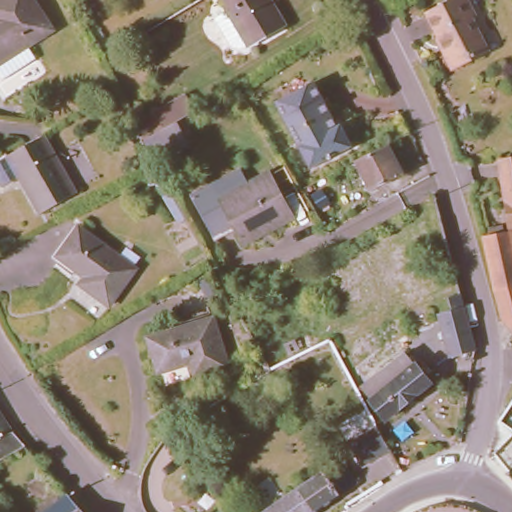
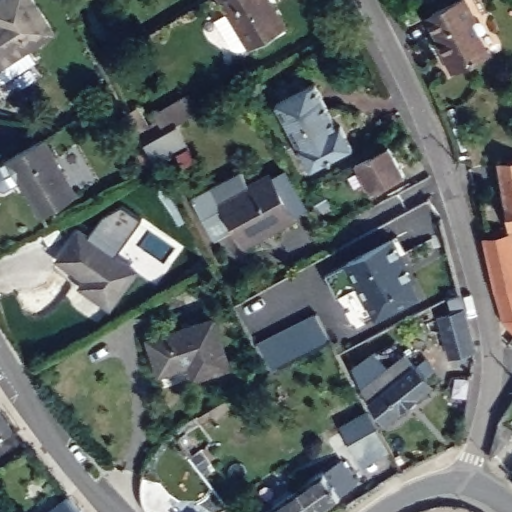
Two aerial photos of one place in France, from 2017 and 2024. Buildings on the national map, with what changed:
unchanged [(47,31),(23,45),(40,75),(0,97),(0,0),(28,0),(47,31)]
unchanged [(272,10),(236,31),(218,0),(266,0),(272,10)]
unchanged [(468,14),(465,15),(483,48),(450,67),(441,52),(443,50),(422,15),(448,0),(461,0),(468,14)]
unchanged [(332,124),(335,122),(347,144),(305,165),(270,101),(308,81),(332,124)]
unchanged [(140,127),(151,120),(159,116),(165,127),(157,131),(145,139),(140,127)]
unchanged [(77,193),(41,214),(8,155),(45,136),(77,193)]
unchanged [(404,175),(374,190),(358,161),(389,145),(404,175)]
unchanged [(512,157),(512,203),(505,204),(500,158),(512,157)]
unchanged [(245,244),(237,228),(217,238),(193,194),(215,182),(223,197),(270,172),(293,217),(245,244)]
unchanged [(371,205),(329,228),(320,212),(305,187),(322,177),(333,195),(357,182),(360,190),(362,189),(371,205)]
unchanged [(505,204),(512,203),(512,226),(507,226),(505,204)]
unchanged [(57,250),(80,222),(137,266),(107,301),(80,279),(85,273),(77,266),(57,250)]
unchanged [(482,237),(507,234),(512,254),(512,287),(493,290),(482,237)]
new [(389,239),(410,278),(405,281),(414,297),(374,318),(357,284),(335,296),(323,273),(389,239)]
unchanged [(493,290),(512,287),(512,332),(500,320),(493,290)]
unchanged [(445,360),(435,318),(460,311),(470,354),(445,360)]
new [(255,345),(312,315),(327,342),(270,371),(255,345)]
unchanged [(213,318),(227,368),(191,377),(187,363),(157,371),(148,336),(213,318)]
unchanged [(376,425),(362,406),(363,404),(353,392),(394,358),(405,372),(407,370),(422,388),(376,425)]
unchanged [(9,431),(0,436),(0,418),(9,431)]
unchanged [(357,460),(345,438),(367,426),(378,448),(357,460)]
unchanged [(252,512),(250,509),(337,450),(353,474),(297,512),(252,512)]
unchanged [(212,501),(202,486),(210,481),(220,495),(212,501)]
unchanged [(64,495),(79,512),(64,512),(55,501),(64,495)]

